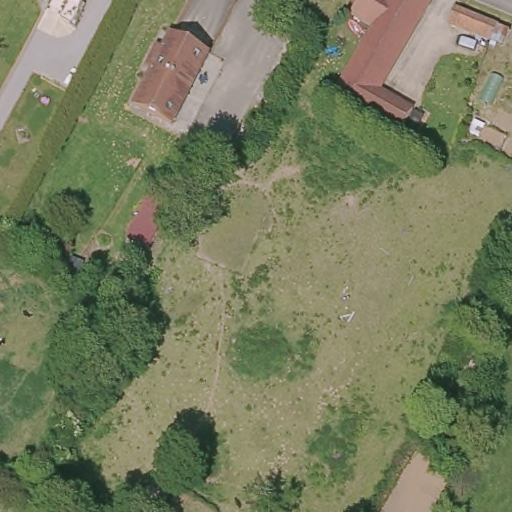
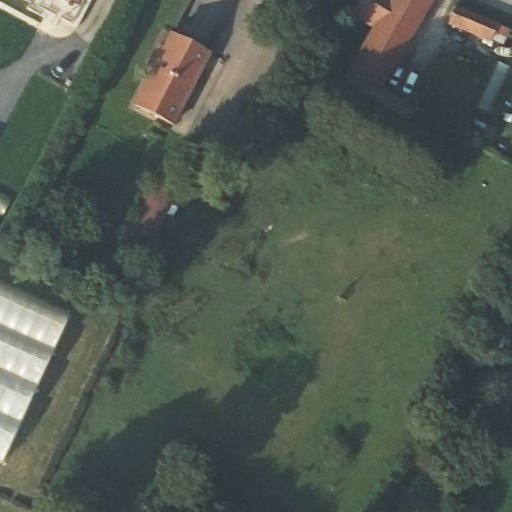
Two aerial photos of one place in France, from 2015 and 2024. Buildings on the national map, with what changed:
unchanged [(407,105),(396,121),(394,126),(330,85),(332,83),(373,20),(370,18),(350,5),(352,0),(427,0),(374,83),(407,105)]
unchanged [(502,34),(496,49),(457,30),(462,16),(502,34)]
unchanged [(147,68),(159,46),(165,50),(175,33),(212,53),(172,126),(135,106),(154,71),(147,68)]
new [(4,467),(0,465),(0,286),(70,318),(4,467)]

